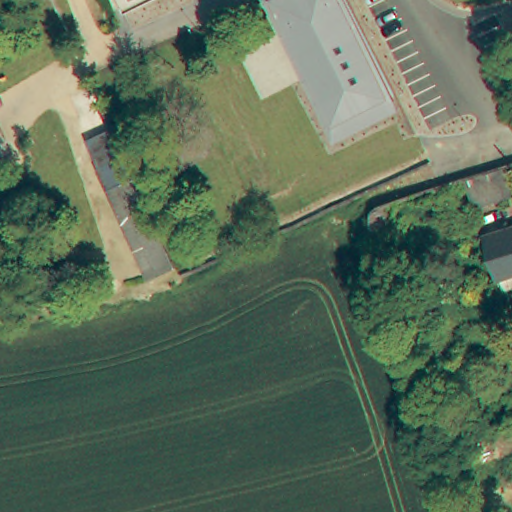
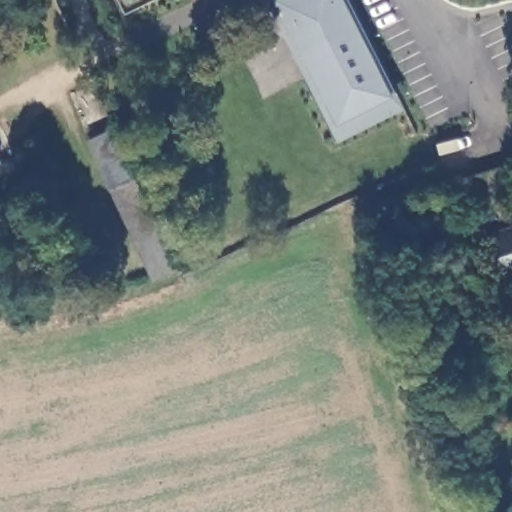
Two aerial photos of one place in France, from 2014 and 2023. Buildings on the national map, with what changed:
unchanged [(267,0),(350,0),(406,111),(339,142),(267,0)]
unchanged [(104,170),(106,169),(92,141),(115,130),(123,147),(129,158),(182,267),(157,278),(104,170)]
unchanged [(3,163),(0,164),(0,156),(3,163)]
unchanged [(477,210),(467,181),(512,166),(512,198),(480,209),(477,210)]
unchanged [(418,211),(390,220),(387,214),(390,201),(395,194),(410,187),(418,211)]
unchanged [(512,288),(505,291),(489,234),(512,227),(512,288)]

